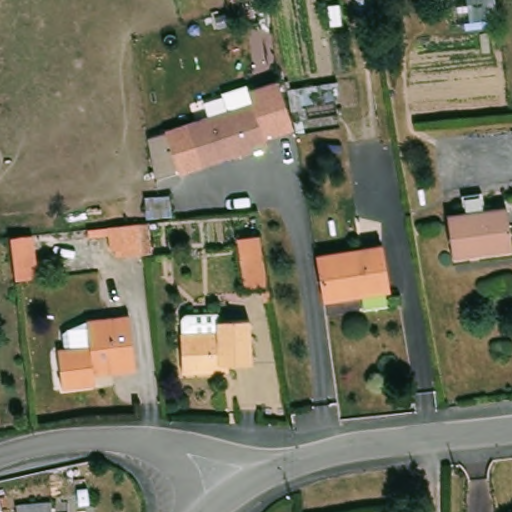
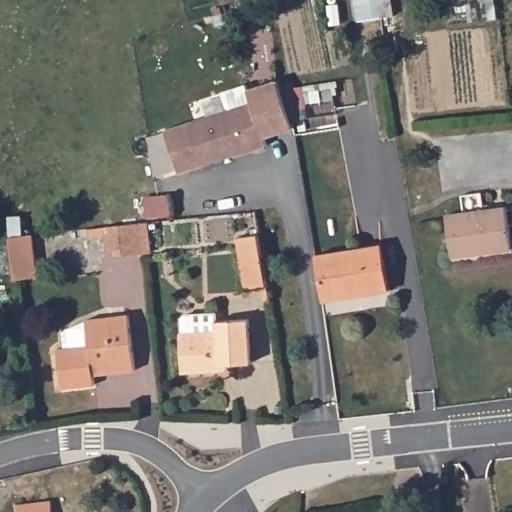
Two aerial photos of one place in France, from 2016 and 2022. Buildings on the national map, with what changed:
new [(394,15),(376,18),(375,18),(359,21),(356,0),(391,0),(394,15)]
unchanged [(251,105),(226,112),(220,92),(245,84),(247,87),(275,79),(291,127),(260,138),(251,105)]
unchanged [(251,105),(263,147),(198,166),(186,124),(251,105)]
unchanged [(198,166),(178,172),(177,169),(153,175),(147,136),(165,132),(164,129),(186,124),(198,166)]
unchanged [(479,255),(455,259),(449,219),(467,217),(464,190),(484,188),(487,215),(508,212),(512,238),(512,254),(481,258),(479,255)]
unchanged [(106,258),(104,238),(85,240),(84,233),(103,231),(133,228),(143,227),(146,257),(137,258),(110,261),(106,258)]
unchanged [(263,285),(249,288),(237,238),(258,234),(269,283),(272,298),(266,299),(263,285)]
unchanged [(30,239),(36,281),(14,283),(9,240),(30,239)]
unchanged [(381,245),(389,289),(325,299),(317,254),(381,245)]
unchanged [(94,375),(95,385),(62,388),(58,348),(90,345),(87,320),(130,316),(136,371),(94,375)]
unchanged [(218,367),(217,372),(182,376),(177,336),(213,332),(212,323),(243,320),(249,364),(218,367)]
unchanged [(53,502),(54,512),(15,512),(15,505),(53,502)]

